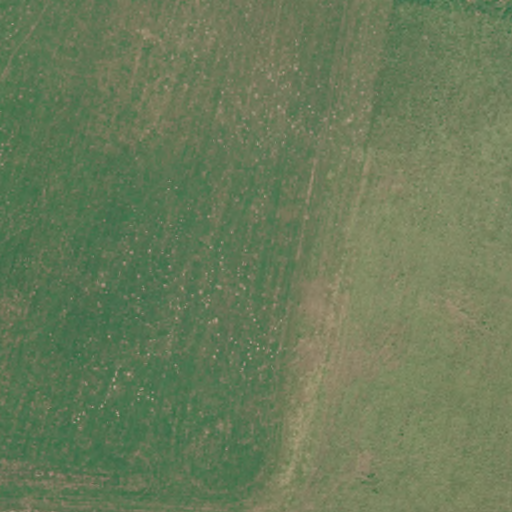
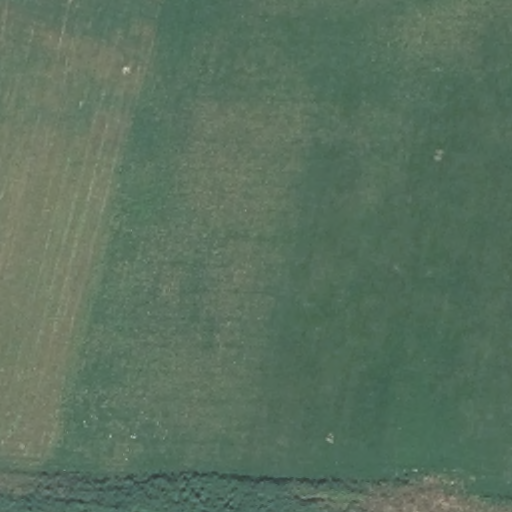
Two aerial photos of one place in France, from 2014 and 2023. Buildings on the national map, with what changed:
[]

